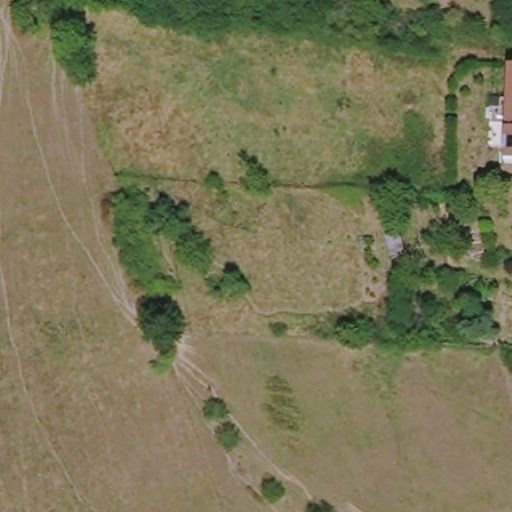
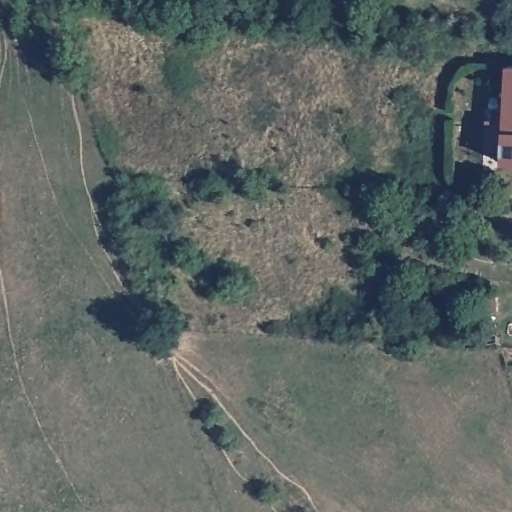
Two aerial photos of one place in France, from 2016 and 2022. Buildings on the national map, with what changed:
unchanged [(509,165),(512,128),(512,165),(509,165)]

